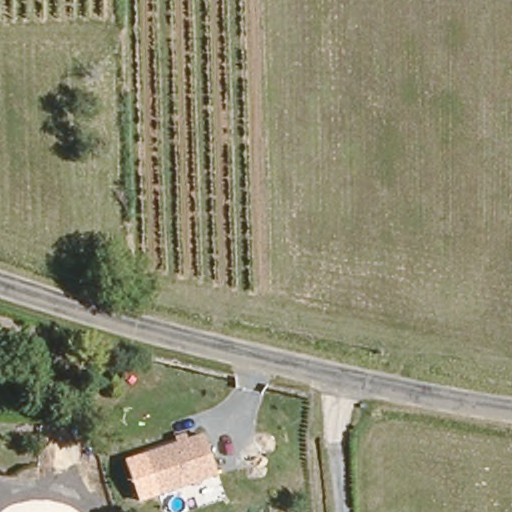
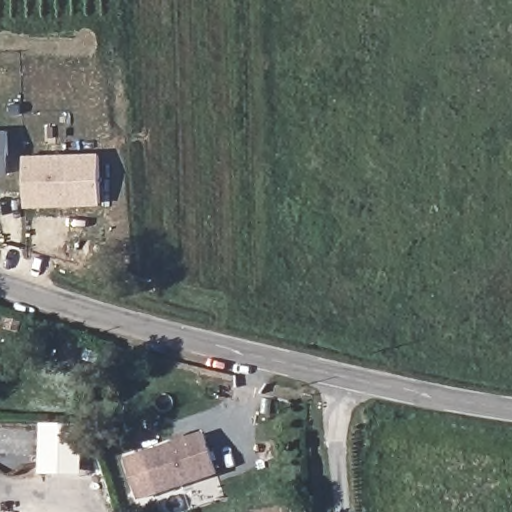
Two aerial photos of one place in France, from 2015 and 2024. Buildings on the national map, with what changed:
new [(0,175),(0,130),(8,130),(9,175),(0,175)]
new [(100,151),(101,204),(25,207),(23,155),(100,151)]
new [(0,330),(0,316),(48,332),(43,345),(0,330)]
unchanged [(142,453),(175,441),(173,436),(186,432),(188,437),(203,435),(215,476),(158,495),(142,453)]

